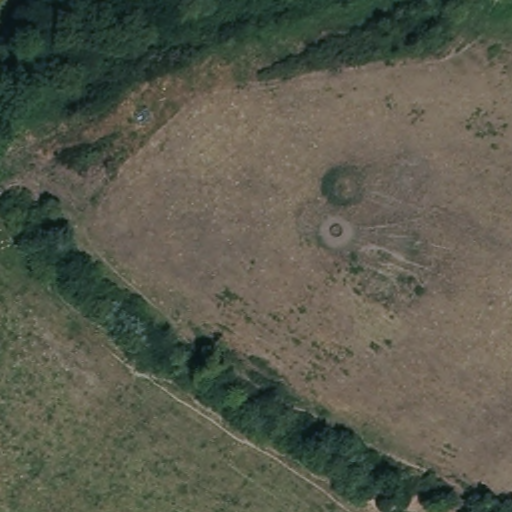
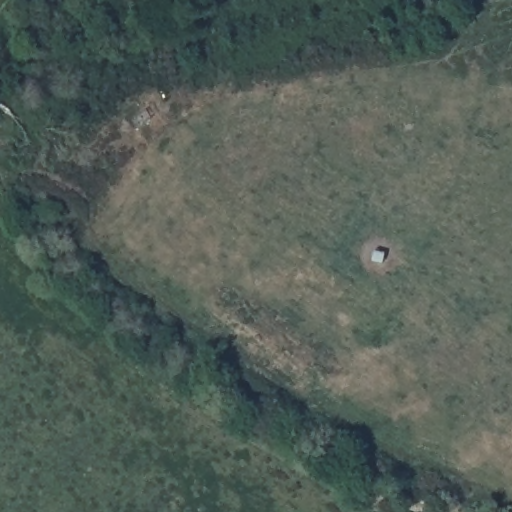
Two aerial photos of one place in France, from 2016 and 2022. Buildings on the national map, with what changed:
[]

